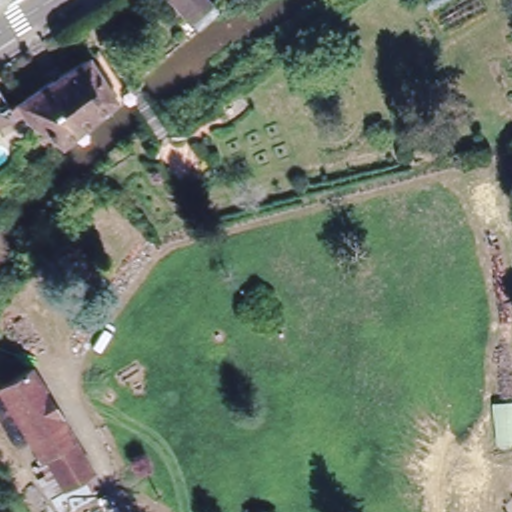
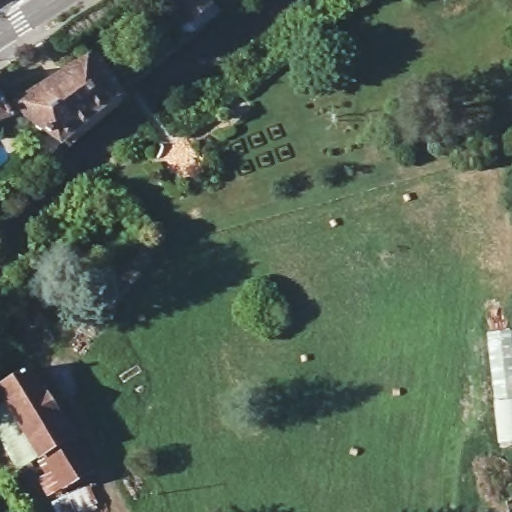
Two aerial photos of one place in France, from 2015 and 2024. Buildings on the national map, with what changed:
unchanged [(183,9),(186,5),(182,0),(211,0),(217,7),(196,24),(183,9)]
unchanged [(30,118),(19,100),(91,55),(118,97),(64,142),(30,118)]
unchanged [(0,89),(9,105),(19,100),(30,118),(23,111),(16,114),(0,120),(0,89)]
new [(512,331),(512,442),(498,443),(488,334),(512,331)]
unchanged [(94,467),(101,493),(70,512),(59,512),(37,477),(50,468),(45,454),(32,460),(2,406),(0,403),(0,384),(36,360),(94,467)]
unchanged [(32,460),(17,473),(0,443),(0,407),(2,406),(32,460)]

